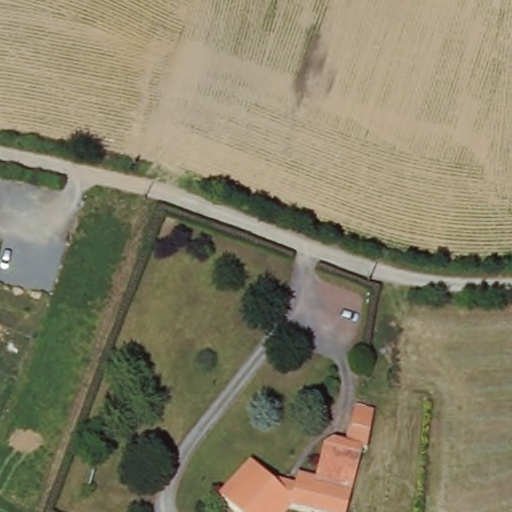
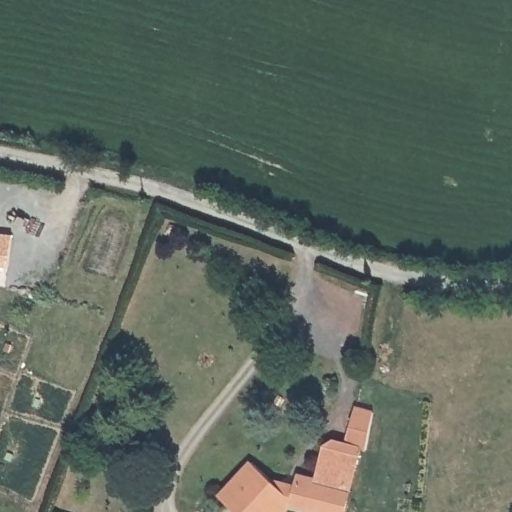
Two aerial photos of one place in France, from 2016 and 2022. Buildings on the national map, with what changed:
unchanged [(375,416),(367,452),(364,452),(356,482),(348,512),(303,512),(293,510),(291,512),(235,512),(222,500),(254,465),(283,492),(286,494),(287,492),(296,495),(300,482),(317,487),(322,468),(328,446),(332,443),(349,447),(357,412),(375,416)]

